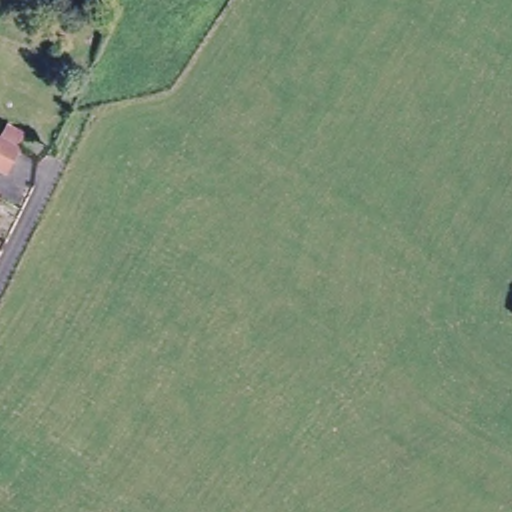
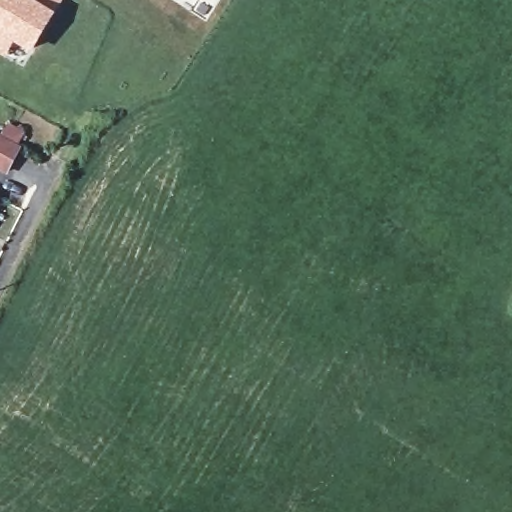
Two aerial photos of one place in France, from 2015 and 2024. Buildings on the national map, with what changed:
new [(33,52),(13,41),(5,56),(0,53),(0,0),(63,0),(33,52)]
unchanged [(7,125),(24,134),(17,148),(18,149),(5,173),(0,170),(0,139),(7,125)]

